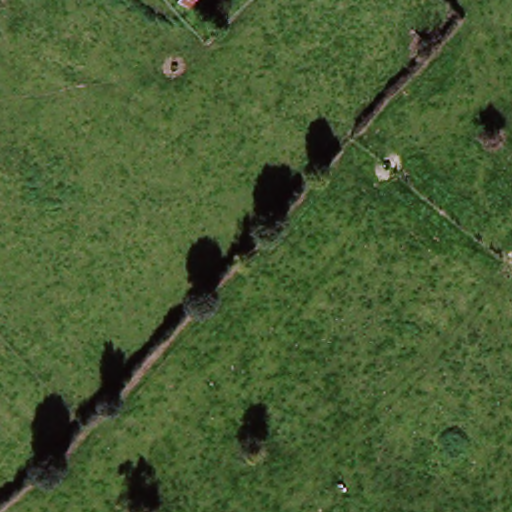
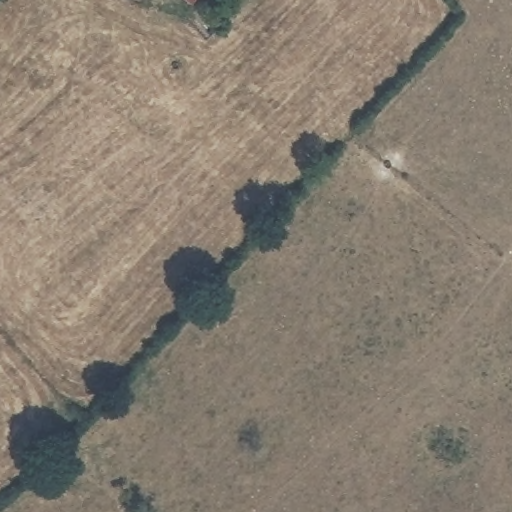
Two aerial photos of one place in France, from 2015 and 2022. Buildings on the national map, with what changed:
unchanged [(185,6),(180,0),(191,0),(185,6)]

